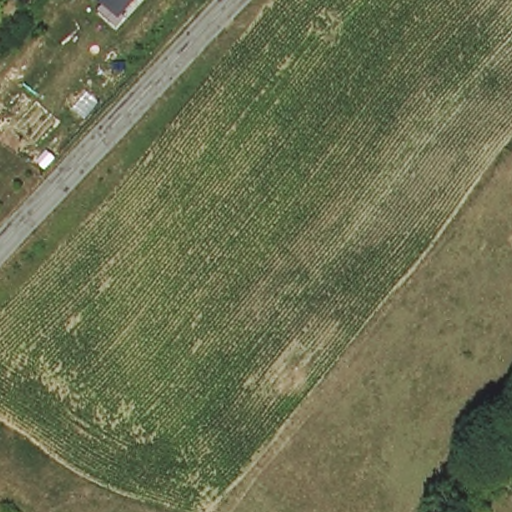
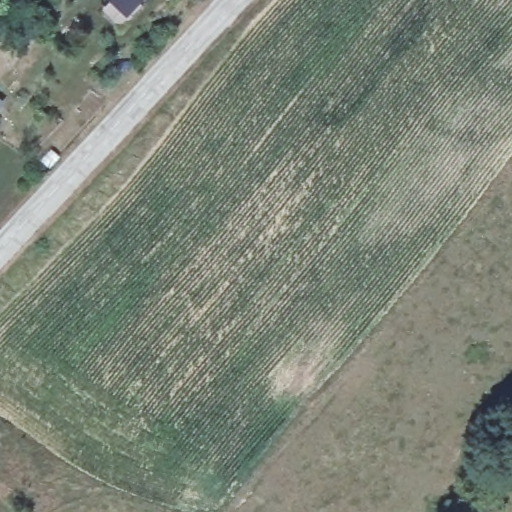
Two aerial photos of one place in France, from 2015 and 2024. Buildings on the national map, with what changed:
unchanged [(120,28),(100,10),(110,0),(136,0),(142,5),(120,28)]

